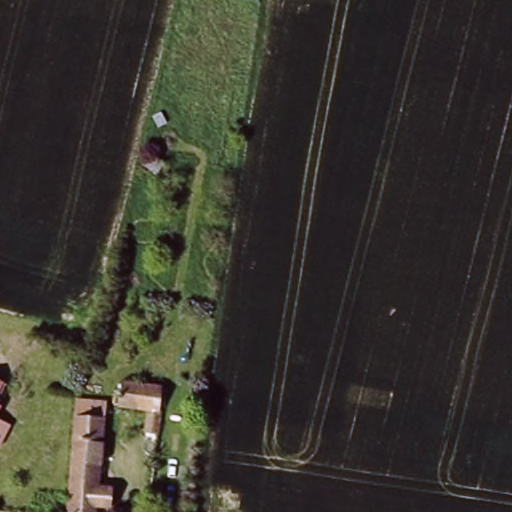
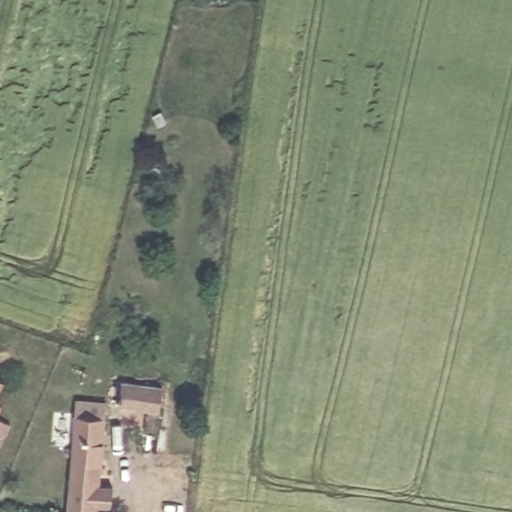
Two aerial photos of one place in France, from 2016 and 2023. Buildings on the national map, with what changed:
unchanged [(158,432),(145,430),(145,407),(117,404),(120,379),(162,388),(160,410),(161,410),(158,432)]
unchanged [(110,488),(108,507),(105,507),(105,512),(66,512),(75,398),(98,400),(97,417),(102,418),(98,488),(110,488)]
unchanged [(1,407),(0,411),(0,406),(1,407)]

